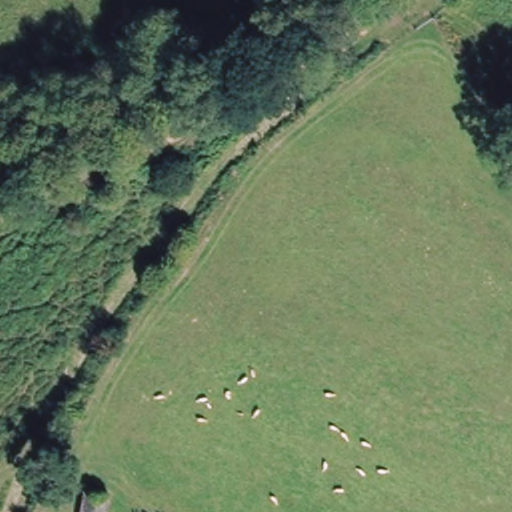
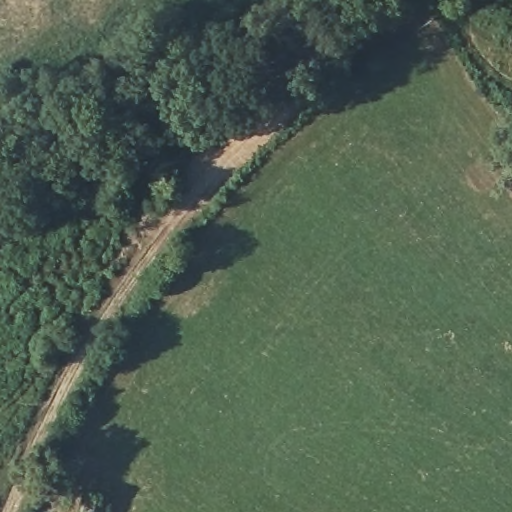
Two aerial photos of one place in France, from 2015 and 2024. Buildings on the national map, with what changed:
unchanged [(114,493),(111,512),(81,512),(85,489),(114,493)]

